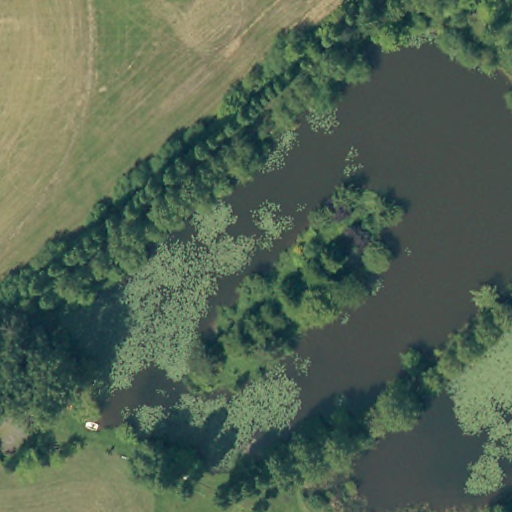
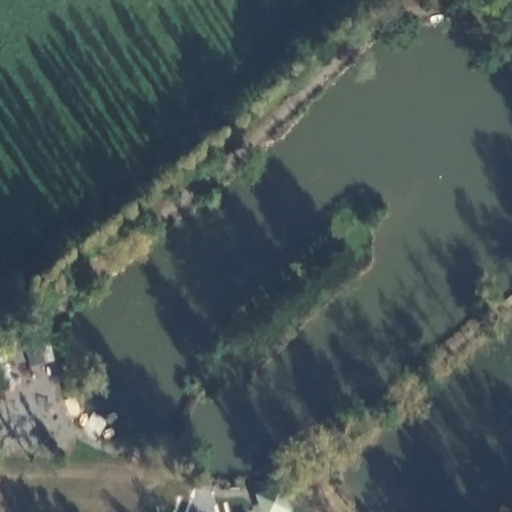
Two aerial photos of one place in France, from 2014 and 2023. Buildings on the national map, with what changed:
unchanged [(52,359),(30,366),(18,325),(40,319),(52,359)]

